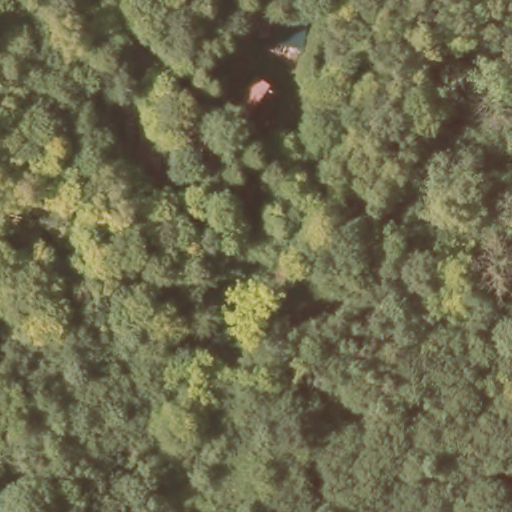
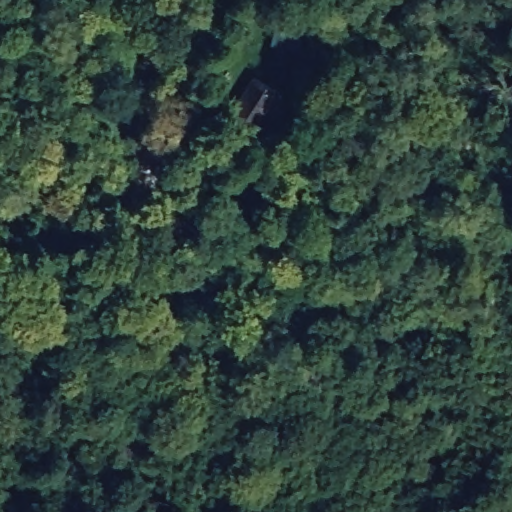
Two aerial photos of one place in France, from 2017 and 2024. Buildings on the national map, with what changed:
unchanged [(280,89),(253,133),(227,121),(252,77),(280,89)]

